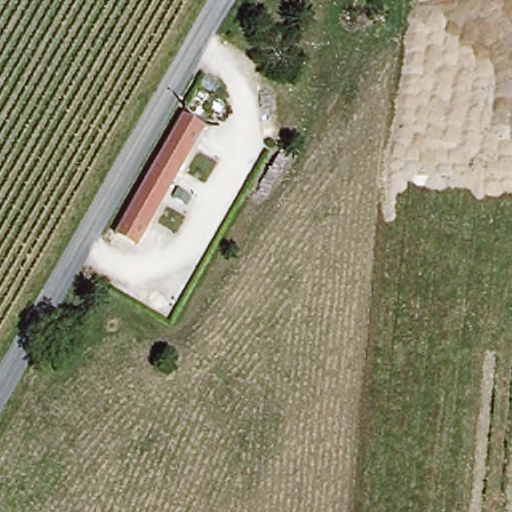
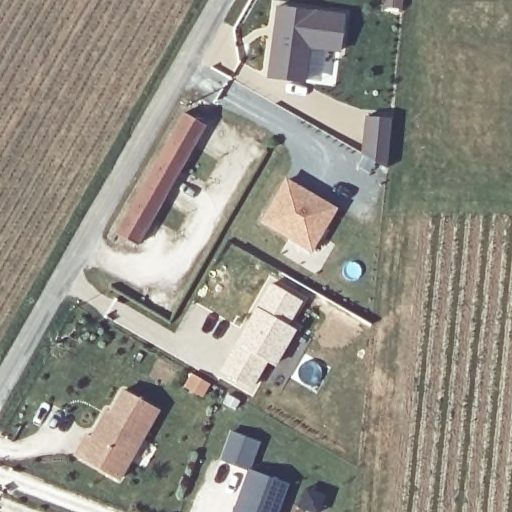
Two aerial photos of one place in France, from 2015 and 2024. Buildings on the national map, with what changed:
new [(276,7),(343,14),(339,50),(308,46),(304,81),(268,78),(276,7)]
unchanged [(182,112),(199,122),(129,242),(113,234),(182,112)]
new [(365,116),(390,118),(387,167),(362,152),(365,116)]
new [(285,181),(336,208),(313,249),(263,221),(285,181)]
new [(272,285),(301,300),(288,325),(296,329),(276,365),(268,361),(253,388),(224,372),(272,285)]
new [(72,453),(83,431),(90,435),(106,406),(110,407),(121,388),(160,410),(119,481),(72,453)]
new [(247,469),(285,484),(276,512),(232,512),(247,469)]

